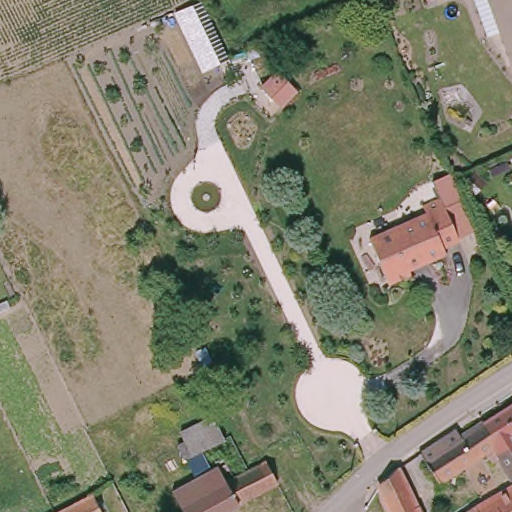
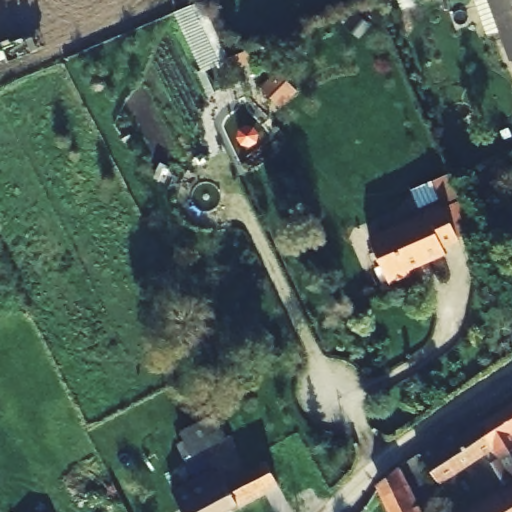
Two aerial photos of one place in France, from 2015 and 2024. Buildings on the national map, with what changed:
unchanged [(511,65),(485,0),(512,0),(512,65),(511,65)]
unchanged [(204,1),(229,61),(202,75),(173,13),(204,1)]
unchanged [(427,218),(422,209),(438,202),(456,241),(459,242),(457,247),(454,246),(444,250),(448,257),(427,266),(425,262),(404,271),(409,281),(389,290),(369,245),(427,218)]
unchanged [(502,452),(495,442),(500,438),(495,430),(488,419),(487,417),(512,401),(512,469),(502,452)]
unchanged [(182,431),(218,415),(224,437),(183,455),(176,439),(184,435),(182,431)]
unchanged [(467,433),(488,419),(495,430),(500,438),(495,442),(442,477),(424,449),(461,425),(467,433)]
unchanged [(214,457),(223,452),(233,473),(274,451),(285,473),(236,499),(236,502),(217,512),(186,512),(173,486),(218,462),(214,457)]
unchanged [(384,478),(404,464),(424,512),(398,512),(384,478)]
unchanged [(512,485),(512,512),(467,512),(512,485)]
unchanged [(91,493),(104,512),(55,512),(91,493)]

